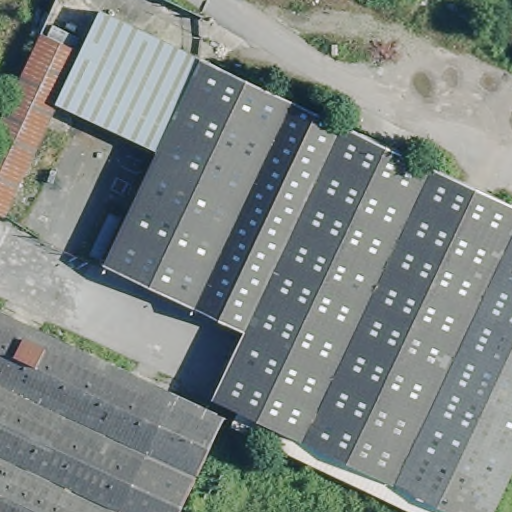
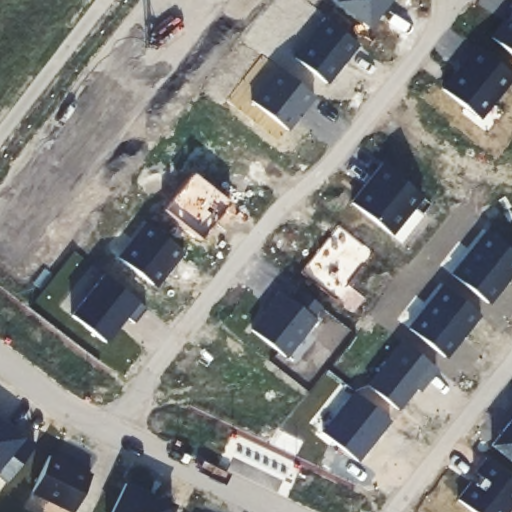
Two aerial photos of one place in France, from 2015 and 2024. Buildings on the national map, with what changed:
new [(367,29),(331,1),(332,0),(390,0),(367,29)]
demolished [(342,430),(303,362),(293,344),(287,344),(240,343),(246,331),(174,296),(105,263),(128,212),(157,150),(59,104),(33,158),(7,212),(5,215),(0,213),(0,121),(10,101),(41,33),(82,51),(101,8),(165,39),(260,84),(367,135),(472,186),(512,205),(512,476),(495,512),(478,512),(468,508),(342,430)]
new [(492,36),(512,12),(512,52),(492,36)]
new [(358,44),(327,83),(293,57),(325,17),(358,44)]
demolished [(7,89),(0,87),(0,38),(27,50),(7,89)]
new [(512,76),(512,80),(482,119),(442,88),(475,46),(512,76)]
new [(315,97),(289,130),(250,101),(275,68),(315,97)]
new [(424,197),(394,234),(350,200),(380,162),(424,197)]
new [(229,204),(200,238),(163,208),(192,172),(229,204)]
new [(184,253),(156,288),(117,257),(147,221),(184,253)]
new [(372,254),(335,299),(301,272),(339,226),(372,254)]
new [(512,252),(512,277),(492,303),(452,272),(485,230),(512,252)]
new [(145,309),(134,323),(125,316),(105,342),(70,314),(103,274),(145,309)]
new [(482,316),(447,358),(408,326),(445,282),(482,316)]
new [(291,299),(300,289),(321,308),(314,316),(317,319),(287,357),(250,330),(281,292),(291,299)]
demolished [(136,374),(225,417),(189,495),(181,512),(0,512),(0,311),(42,330),(136,374)]
new [(437,370),(421,391),(417,388),(400,410),(367,383),(400,340),(437,370)]
demolished [(293,344),(303,362),(342,430),(468,508),(478,512),(412,512),(388,500),(329,472),(232,425),(239,411),(213,399),(240,343),(287,344),(293,344)]
new [(390,422),(359,460),(322,431),(354,391),(390,422)]
new [(489,445),(512,415),(512,463),(489,445)]
new [(35,445),(5,483),(0,479),(0,420),(24,437),(35,445)]
new [(72,512),(32,494),(49,454),(92,473),(73,512),(72,512)]
new [(509,512),(476,512),(457,496),(485,459),(512,480),(512,508),(509,512)]
new [(111,512),(125,482),(175,504),(171,512),(111,512)]

